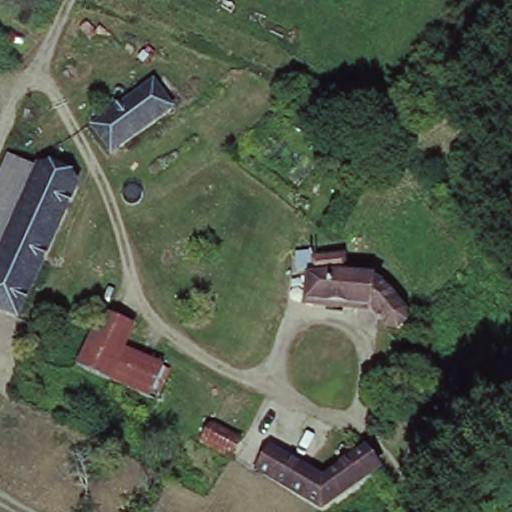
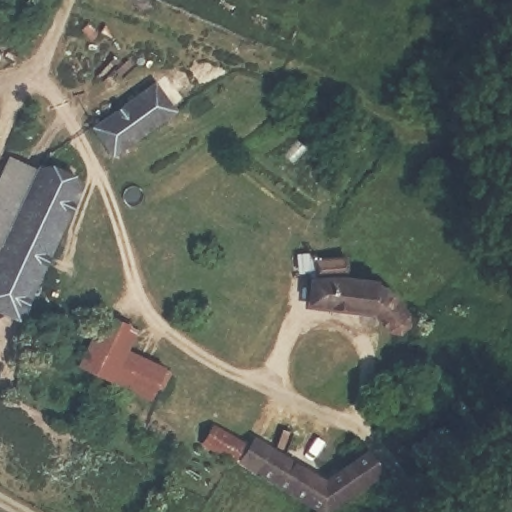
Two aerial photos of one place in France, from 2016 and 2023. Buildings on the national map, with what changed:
unchanged [(149,81),(173,110),(110,161),(88,134),(149,81)]
unchanged [(7,161),(32,172),(4,241),(0,239),(0,177),(7,161)]
unchanged [(4,241),(32,172),(78,191),(19,317),(0,309),(0,239),(4,241)]
unchanged [(392,335),(382,332),(376,322),(375,313),(369,322),(345,316),(325,314),(323,306),(307,306),(310,281),(316,281),(314,275),(295,273),(295,254),(312,255),(316,261),(346,262),(346,280),(365,278),(381,281),(393,287),(400,296),(408,309),(412,320),(408,329),(402,335),(398,336),(392,335)]
unchanged [(77,366),(104,313),(139,333),(129,350),(139,355),(119,387),(77,366)]
unchanged [(139,355),(172,371),(153,405),(119,387),(139,355)]
unchanged [(210,425),(253,446),(247,458),(242,466),(200,445),(210,425)]
unchanged [(248,472),(263,446),(321,476),(365,447),(380,471),(327,512),(248,472)]

